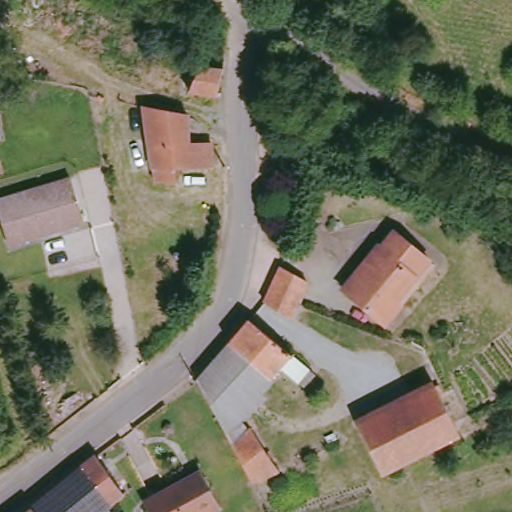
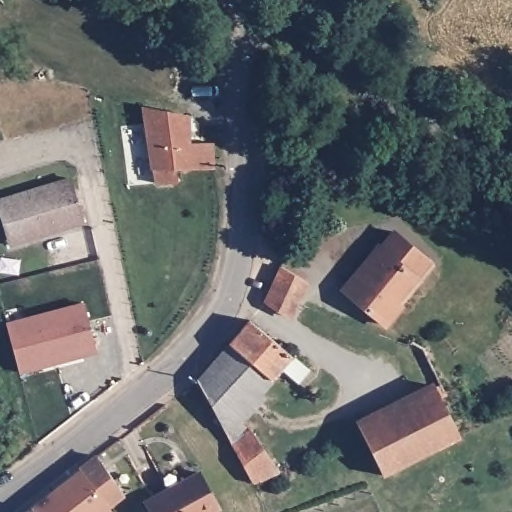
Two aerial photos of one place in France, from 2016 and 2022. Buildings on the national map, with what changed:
unchanged [(185,89),(197,64),(218,66),(213,94),(185,89)]
unchanged [(165,169),(164,191),(153,191),(155,171),(145,108),(185,116),(187,144),(217,144),(218,168),(165,169)]
unchanged [(34,233),(7,240),(0,213),(0,201),(70,183),(82,227),(35,239),(34,233)]
unchanged [(340,290),(372,255),(373,256),(392,234),(432,269),(384,322),(380,326),(358,306),(340,290)]
unchanged [(270,295),(282,268),(295,277),(310,287),(296,309),(289,322),(265,307),(270,295)]
new [(17,363),(7,327),(85,307),(97,355),(48,368),(20,375),(17,363)]
unchanged [(253,480),(194,376),(249,320),(315,369),(310,375),(302,369),(295,376),(281,365),(245,403),(248,410),(243,414),(246,418),(240,423),(244,429),(248,426),(278,469),(253,480)]
unchanged [(355,426),(432,388),(460,439),(381,478),(355,426)]
unchanged [(127,497),(106,512),(105,512),(75,476),(96,459),(114,481),(127,497)]
unchanged [(144,503),(201,471),(215,495),(220,505),(207,512),(149,512),(144,503)]
unchanged [(75,476),(105,512),(28,512),(75,476)]

